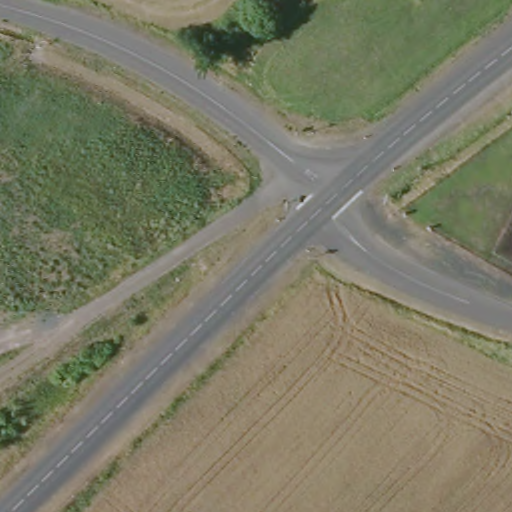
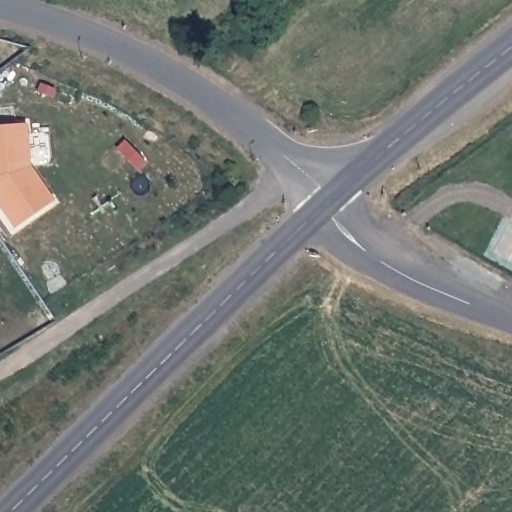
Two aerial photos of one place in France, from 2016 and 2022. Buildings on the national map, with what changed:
new [(15,229),(0,209),(0,128),(24,126),(28,168),(52,203),(15,229)]

